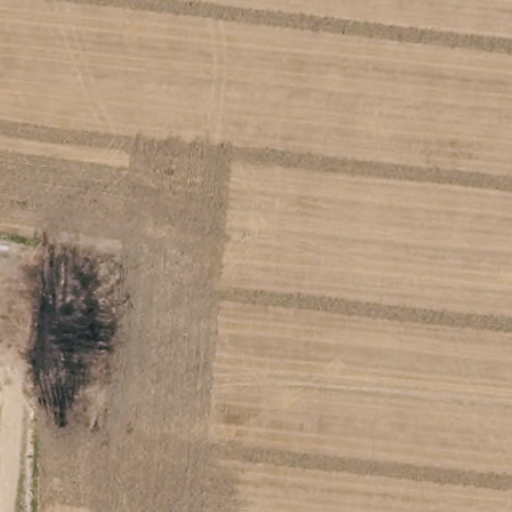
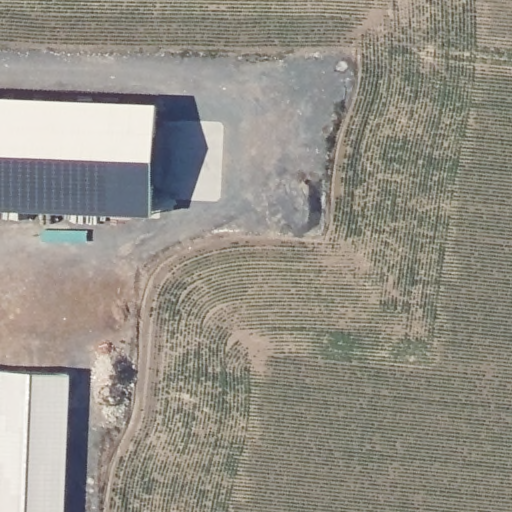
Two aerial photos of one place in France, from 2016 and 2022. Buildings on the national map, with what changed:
new [(0,208),(0,95),(159,102),(154,215),(0,208)]
new [(71,373),(66,512),(0,512),(0,372),(71,373)]

